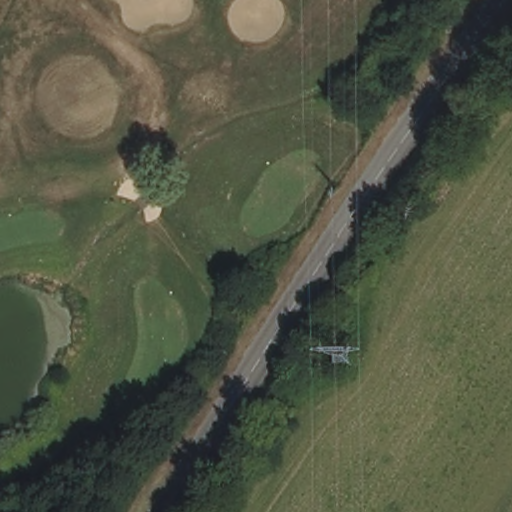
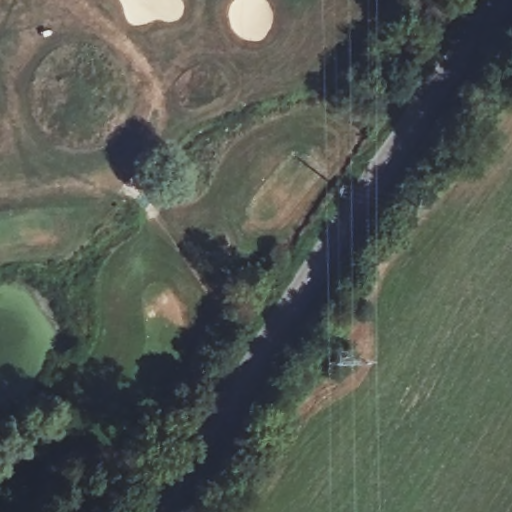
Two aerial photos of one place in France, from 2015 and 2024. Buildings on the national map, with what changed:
[]

